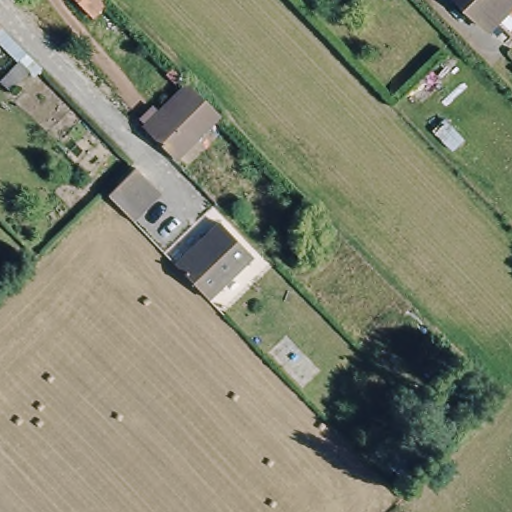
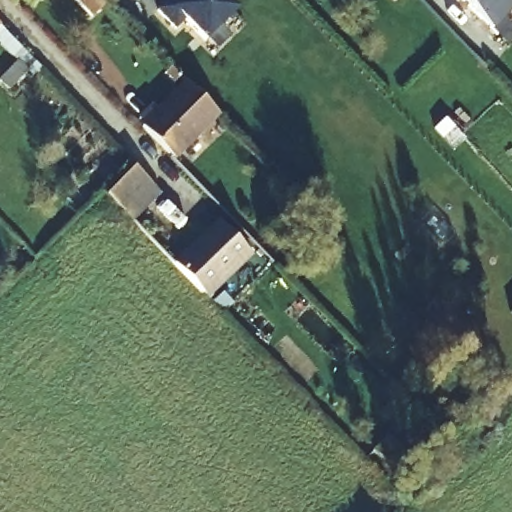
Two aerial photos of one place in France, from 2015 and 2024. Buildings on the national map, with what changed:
unchanged [(73,0),(100,0),(103,3),(88,16),(73,0)]
new [(205,43),(185,22),(175,32),(156,11),(169,0),(178,0),(179,0),(227,0),(238,11),(205,43)]
unchanged [(480,0),(512,0),(512,13),(501,23),(480,0)]
unchanged [(138,129),(186,83),(219,117),(171,162),(138,129)]
unchanged [(158,194),(128,221),(111,203),(141,175),(158,194)]
unchanged [(206,297),(173,263),(218,224),(248,258),(206,297)]

